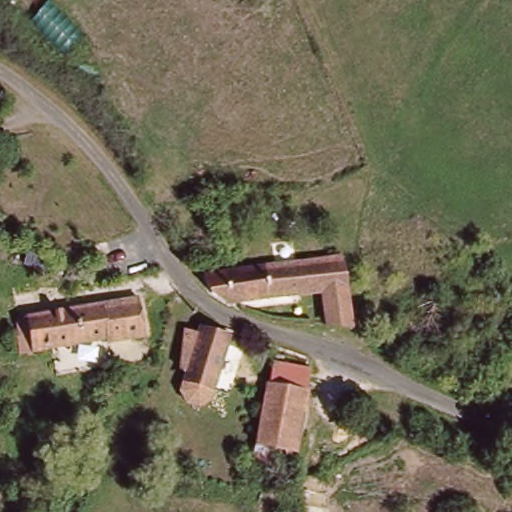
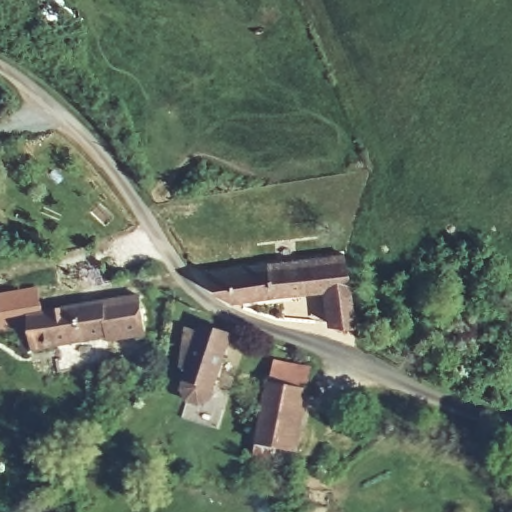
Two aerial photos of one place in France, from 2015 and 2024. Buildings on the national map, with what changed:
unchanged [(290,260),(310,257),(346,254),(353,318),(330,317),(329,290),(276,292),(271,262),(290,260)]
unchanged [(210,291),(205,267),(234,265),(271,262),(276,292),(231,300),(210,291)]
new [(43,315),(17,320),(19,330),(0,335),(0,295),(38,286),(43,315)]
unchanged [(32,347),(23,348),(17,320),(134,298),(141,338),(107,345),(106,342),(33,353),(32,347)]
unchanged [(194,321),(203,322),(207,324),(209,318),(238,327),(219,388),(212,393),(204,394),(196,391),(191,383),(191,378),(192,370),(188,370),(194,321)]
unchanged [(259,419),(273,360),(314,369),(296,450),(253,441),(259,419)]

